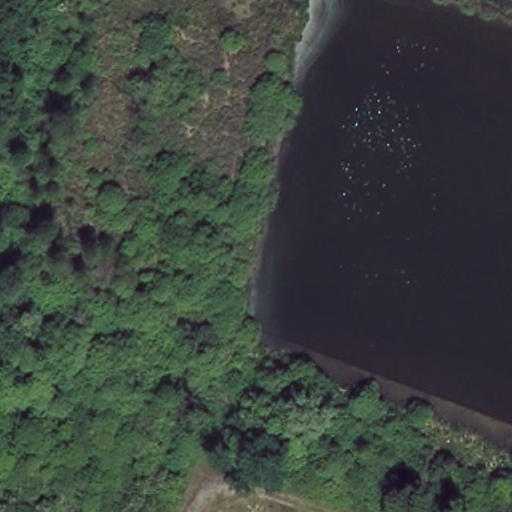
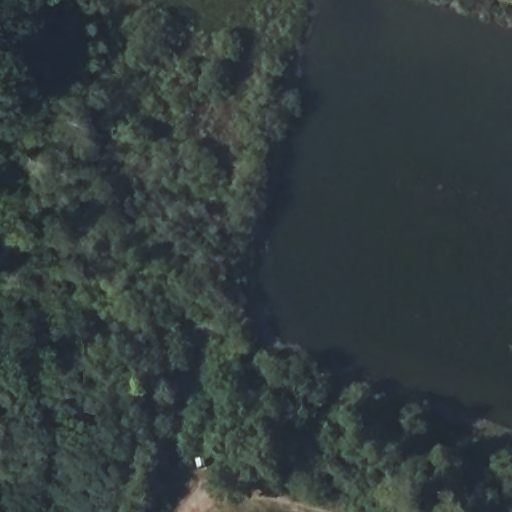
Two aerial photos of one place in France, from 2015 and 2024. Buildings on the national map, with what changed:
[]

